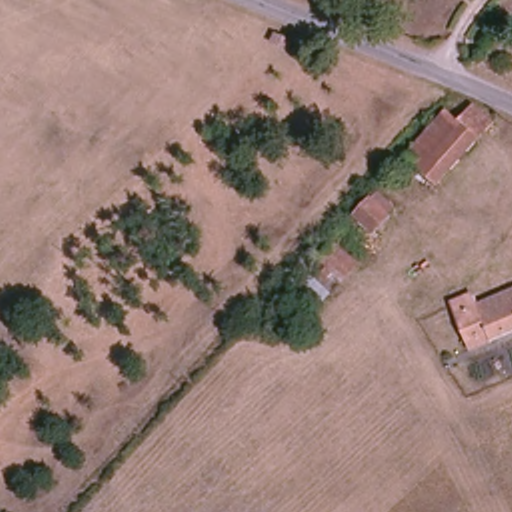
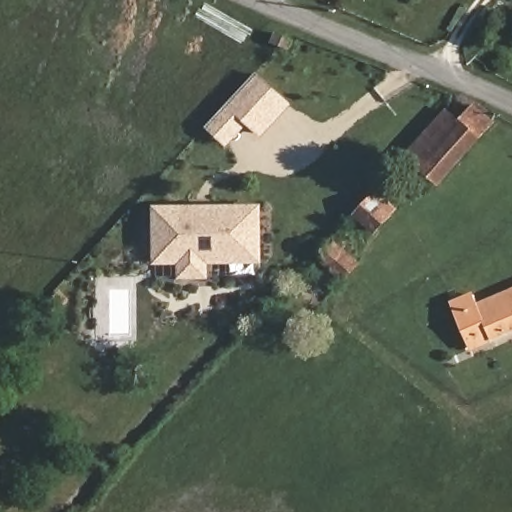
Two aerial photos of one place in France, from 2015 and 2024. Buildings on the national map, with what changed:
new [(248,125),(225,148),(205,128),(255,73),(291,105),(261,138),(248,125)]
unchanged [(454,114),(461,119),(472,106),(490,119),(474,139),(439,180),(409,153),(447,113),(451,117),(454,114)]
unchanged [(393,203),(362,235),(349,223),(380,191),(393,203)]
demolished [(191,213),(182,220),(199,246),(175,262),(147,220),(180,199),(191,213)]
new [(208,279),(177,279),(177,264),(153,265),(152,206),(260,204),(262,264),(208,265),(208,279)]
unchanged [(325,240),(352,265),(339,277),(313,252),(325,240)]
unchanged [(454,303),(466,297),(471,310),(512,293),(512,334),(474,349),(454,303)]

